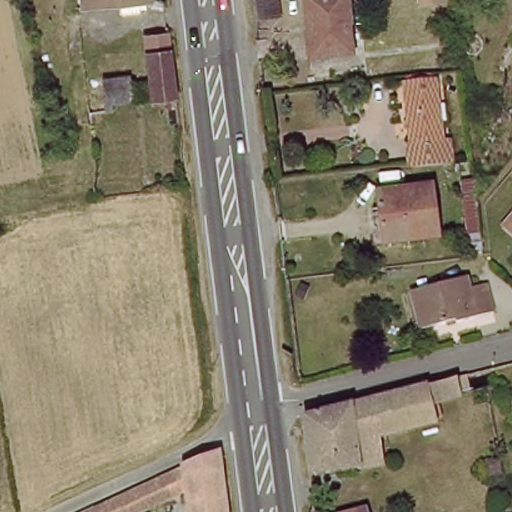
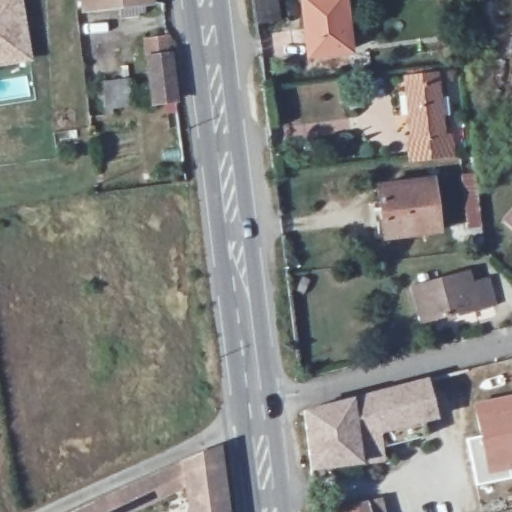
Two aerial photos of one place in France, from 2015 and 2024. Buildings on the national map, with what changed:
new [(33,61),(0,67),(0,0),(23,0),(33,61)]
unchanged [(156,2),(86,10),(85,0),(156,0),(156,2)]
unchanged [(253,0),(285,0),(286,17),(256,18),(253,0)]
unchanged [(354,48),(315,50),(310,0),(350,0),(354,48)]
unchanged [(151,104),(144,40),(163,38),(171,101),(151,104)]
new [(128,77),(131,106),(103,111),(99,81),(128,77)]
unchanged [(443,77),(449,156),(416,159),(409,81),(443,77)]
unchanged [(472,243),(462,176),(480,174),(483,198),(488,241),(472,243)]
unchanged [(439,230),(389,234),(387,183),(436,179),(439,230)]
unchanged [(498,222),(512,206),(512,234),(498,222)]
unchanged [(455,278),(489,276),(496,309),(451,320),(450,315),(418,320),(411,287),(455,278)]
unchanged [(298,410),(473,369),(474,381),(462,383),(463,392),(440,398),(443,419),(400,430),(374,459),(306,469),(298,410)]
new [(478,433),(471,401),(512,393),(512,471),(512,475),(512,480),(475,486),(465,436),(478,433)]
unchanged [(125,483),(219,453),(227,512),(193,512),(190,490),(132,512),(68,512),(115,488),(125,483)]
unchanged [(369,512),(339,512),(367,505),(369,512)]

